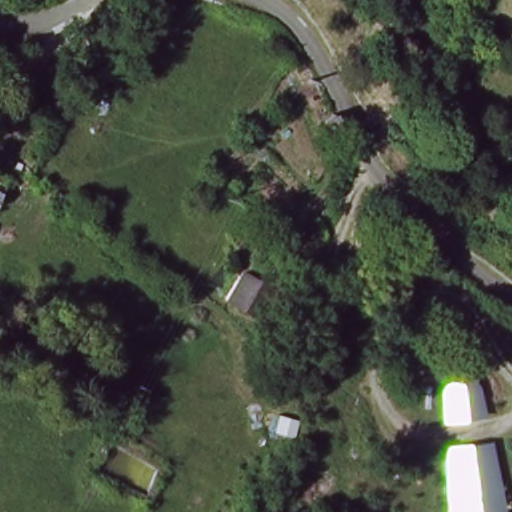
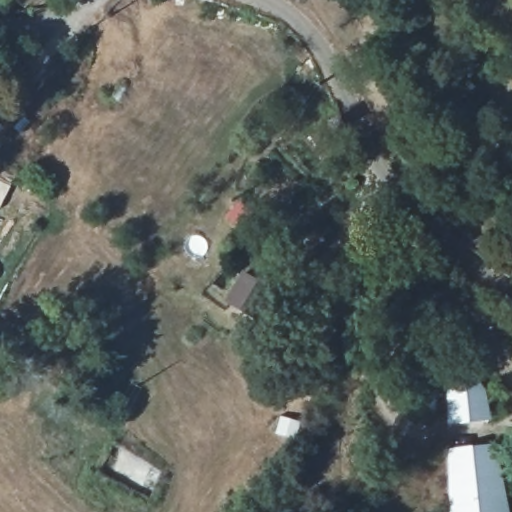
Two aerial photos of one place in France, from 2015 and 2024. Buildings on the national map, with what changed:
unchanged [(0,202),(0,179),(21,192),(12,209),(0,202)]
unchanged [(228,300),(247,278),(269,297),(251,318),(228,300)]
unchanged [(482,422),(453,425),(452,412),(463,387),(480,407),(482,422)]
unchanged [(453,458),(491,453),(501,503),(503,512),(457,512),(453,458)]

